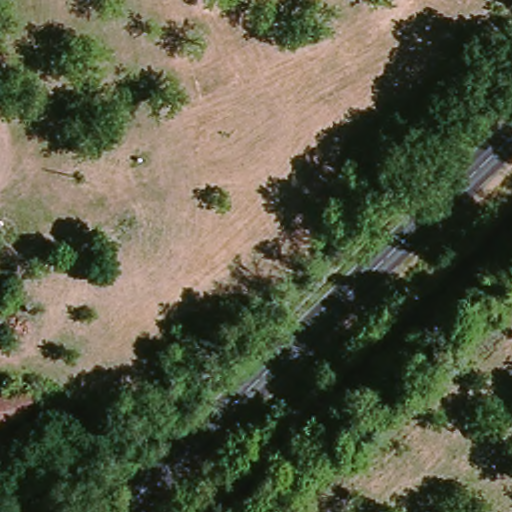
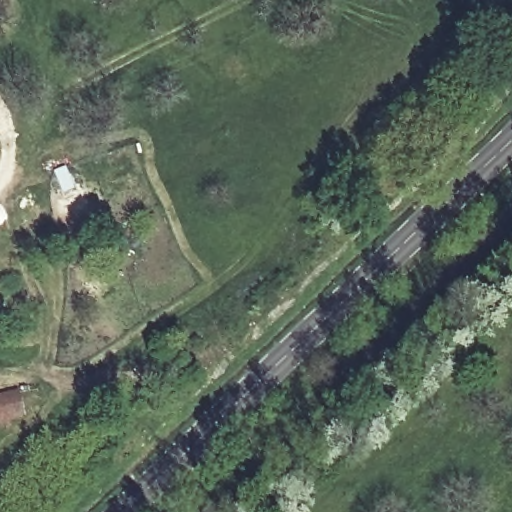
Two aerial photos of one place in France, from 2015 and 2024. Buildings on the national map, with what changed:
unchanged [(37,415),(21,418),(19,426),(0,430),(0,391),(37,387),(37,415)]

